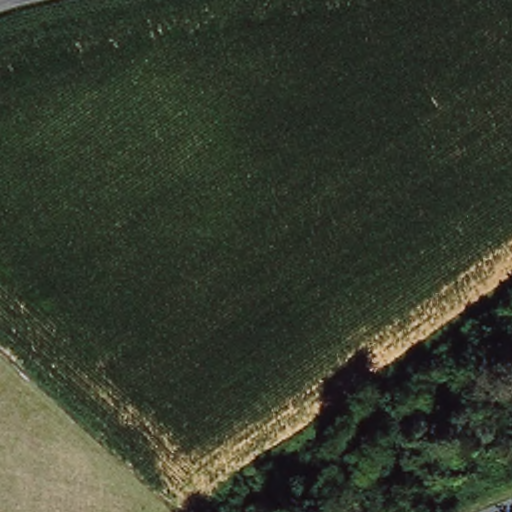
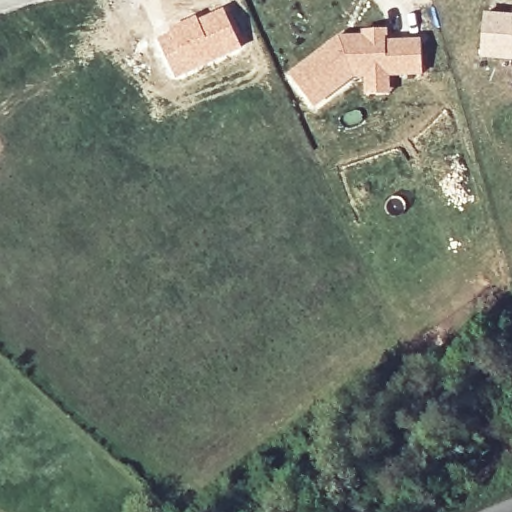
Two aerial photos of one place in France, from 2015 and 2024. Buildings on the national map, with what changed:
new [(197,15),(199,18),(223,7),(242,45),(176,78),(157,39),(197,15)]
new [(512,12),(512,60),(479,57),(484,11),(512,12)]
new [(338,35),(360,33),(360,29),(388,27),(389,38),(422,37),(423,74),(391,77),(392,94),(364,95),(363,77),(351,80),(315,107),(289,73),(338,35)]

